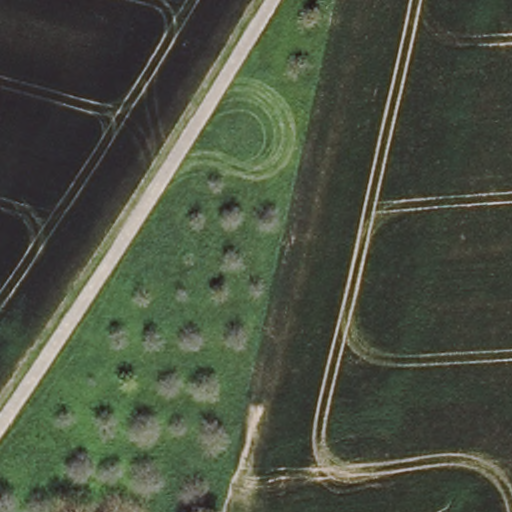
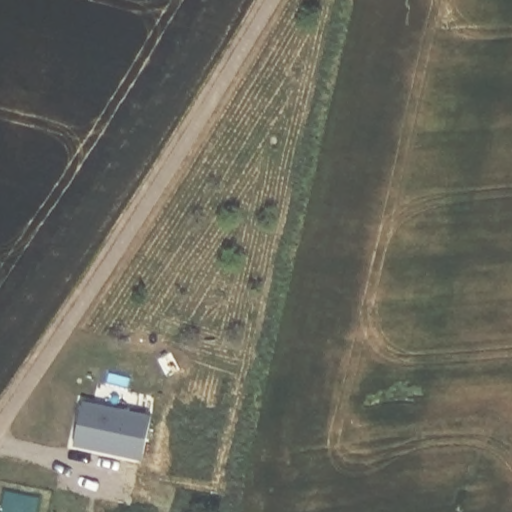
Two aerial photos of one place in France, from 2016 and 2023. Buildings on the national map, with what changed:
new [(80,401),(149,413),(140,460),(72,445),(80,401)]

